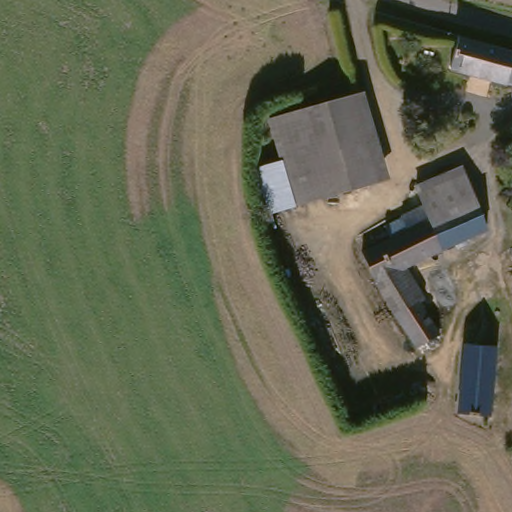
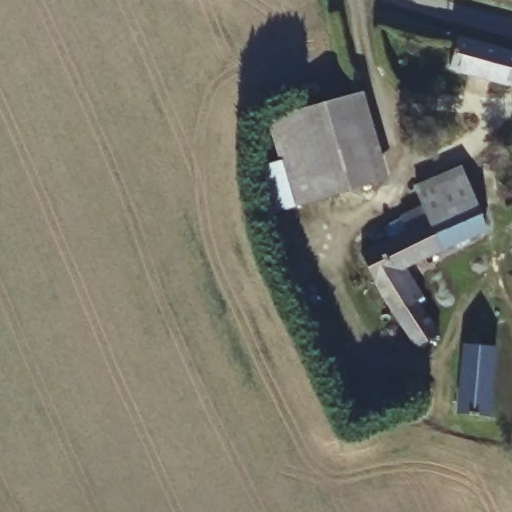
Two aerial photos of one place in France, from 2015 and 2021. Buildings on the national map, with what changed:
unchanged [(454,35),(512,51),(512,83),(447,66),(454,35)]
unchanged [(386,181),(265,217),(253,168),(277,160),(267,119),(363,93),(386,181)]
unchanged [(375,235),(380,245),(389,240),(384,227),(400,220),(423,209),(415,187),(460,169),(475,202),(487,231),(409,266),(423,297),(417,300),(433,333),(412,342),(364,240),(375,235)]
unchanged [(459,346),(488,347),(486,421),(455,421),(459,346)]

